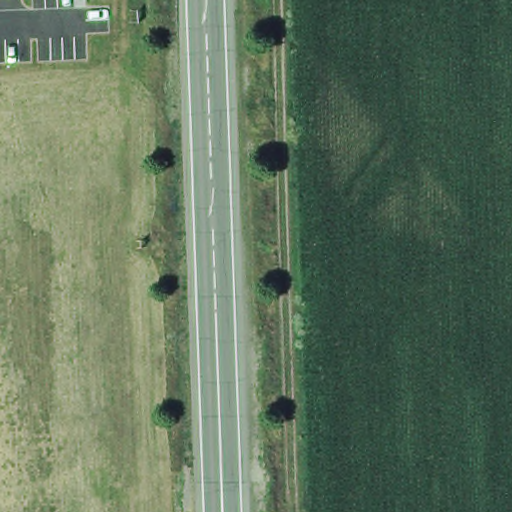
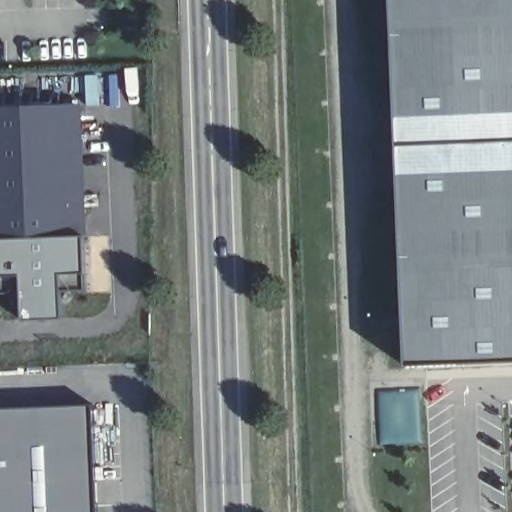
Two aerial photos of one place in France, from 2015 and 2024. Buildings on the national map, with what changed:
new [(408,365),(392,0),(512,0),(512,361),(408,365)]
unchanged [(90,288),(65,289),(66,317),(26,318),(25,291),(0,292),(0,107),(83,103),(90,288)]
new [(97,512),(0,512),(0,408),(93,404),(97,512)]

